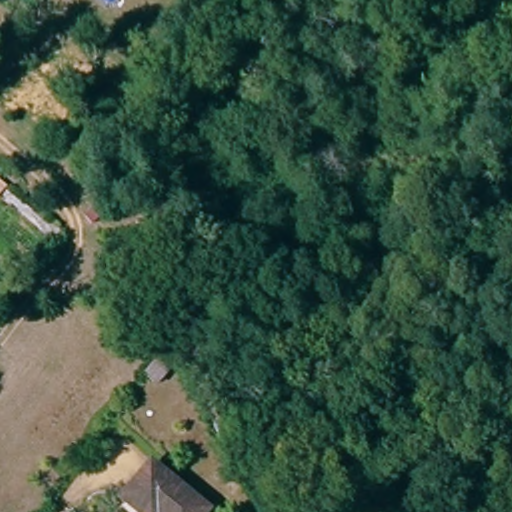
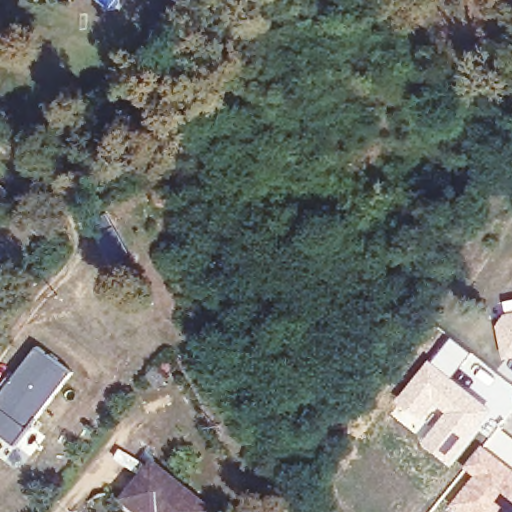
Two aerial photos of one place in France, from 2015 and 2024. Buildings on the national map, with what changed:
new [(505,358),(497,325),(505,312),(512,311),(512,357),(505,358)]
new [(451,337),(471,352),(452,376),(492,409),(451,461),(423,440),(445,412),(437,406),(424,420),(397,399),(431,360),(451,337)]
new [(70,371),(16,445),(0,432),(0,397),(36,346),(70,371)]
new [(451,507),(475,476),(465,470),(483,447),(512,471),(512,512),(457,512),(451,507)]
unchanged [(121,500),(150,465),(206,510),(205,512),(136,512),(121,500)]

